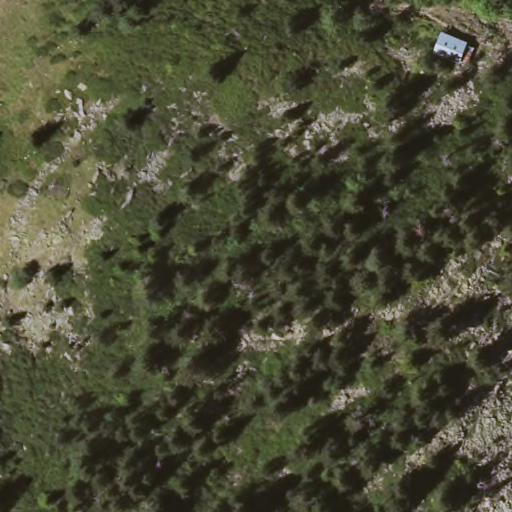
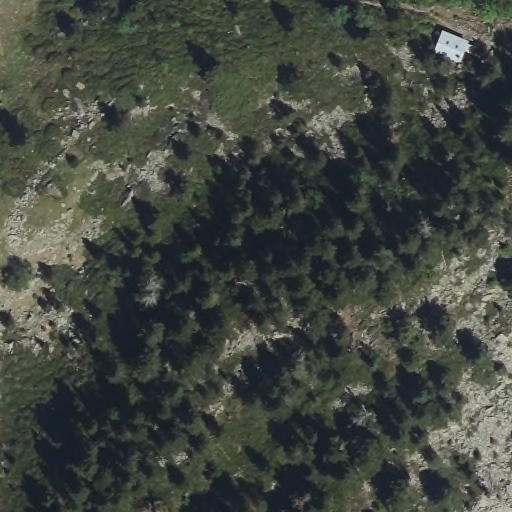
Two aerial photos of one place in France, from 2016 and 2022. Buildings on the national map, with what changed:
unchanged [(456,31),(475,43),(464,61),(433,41),(445,23),(456,31)]

